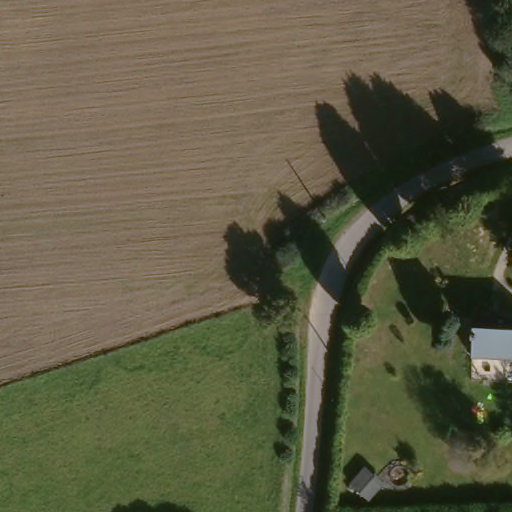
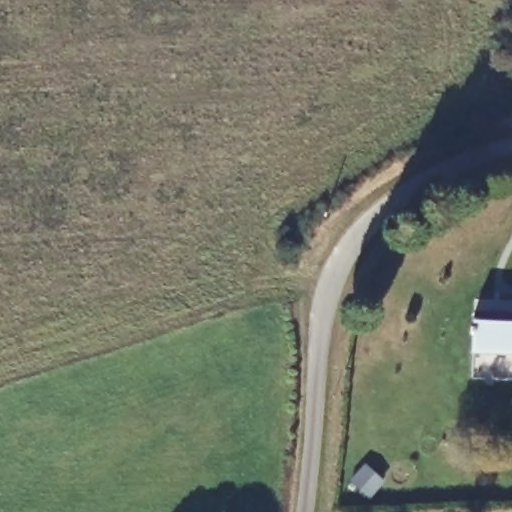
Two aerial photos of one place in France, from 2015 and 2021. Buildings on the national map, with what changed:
unchanged [(512,310),(512,351),(478,349),(478,308),(512,310)]

